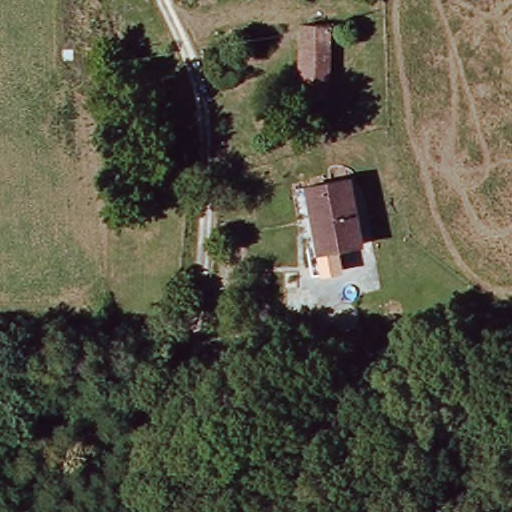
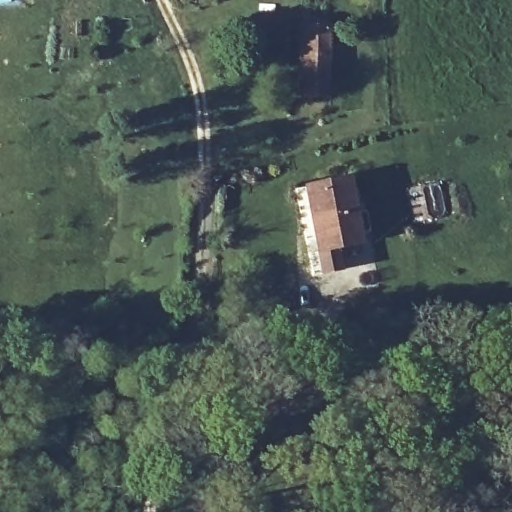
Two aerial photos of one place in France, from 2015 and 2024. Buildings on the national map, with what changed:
unchanged [(301,98),(303,25),(330,26),(328,99),(301,98)]
unchanged [(365,240),(324,250),(312,190),(353,181),(365,240)]

